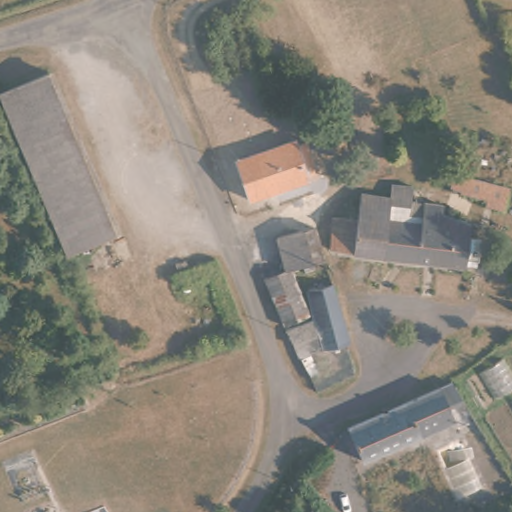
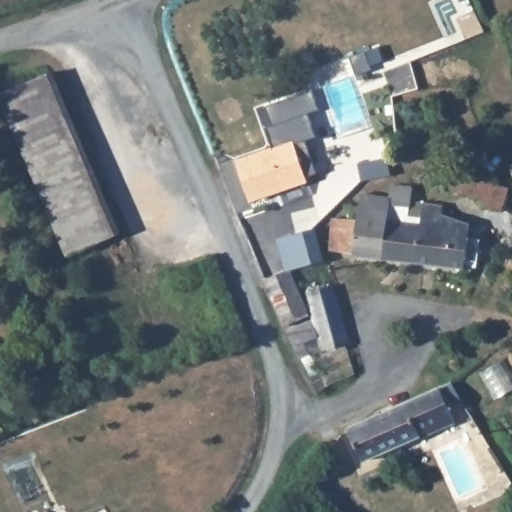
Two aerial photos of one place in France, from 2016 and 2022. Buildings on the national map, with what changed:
unchanged [(50,71),(61,98),(12,117),(1,91),(50,71)]
new [(265,125),(271,123),(265,105),(311,89),(318,109),(307,113),(315,135),(294,142),(274,148),(265,125)]
unchanged [(61,98),(105,205),(55,222),(12,117),(61,98)]
unchanged [(295,147),(309,143),(319,174),(305,178),(308,186),(251,204),(237,160),(294,142),(295,147)]
unchanged [(506,192),(510,193),(504,218),(494,215),(483,212),(485,206),(458,199),(460,193),(450,191),(452,179),(506,192)]
unchanged [(360,211),(360,201),(384,204),(385,193),(410,196),(408,211),(392,209),(391,218),(383,217),(377,259),(329,250),(333,217),(348,219),(350,209),(360,211)]
unchanged [(105,205),(117,237),(70,256),(55,222),(105,205)]
unchanged [(445,217),(475,221),(468,272),(407,264),(413,221),(429,223),(431,216),(445,217)]
unchanged [(413,221),(407,264),(377,259),(383,217),(391,218),(413,221)]
unchanged [(276,239),(313,228),(319,248),(323,264),(288,274),(287,270),(276,239)]
unchanged [(287,270),(288,274),(305,319),(280,328),(260,280),(287,270)]
unchanged [(295,359),(283,335),(316,326),(307,292),(330,285),(339,319),(346,344),(295,359)]
unchanged [(448,378),(455,399),(445,404),(454,421),(358,465),(341,432),(448,378)]

